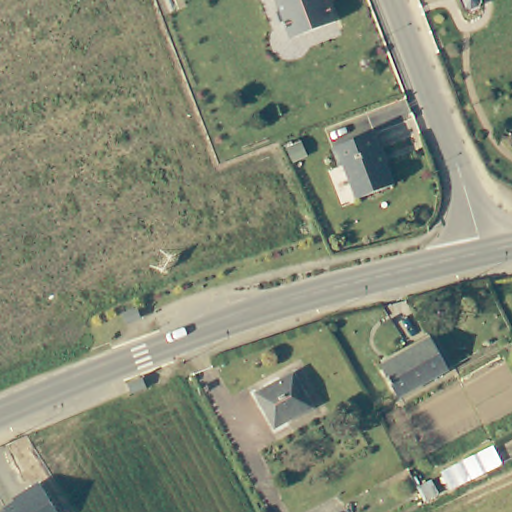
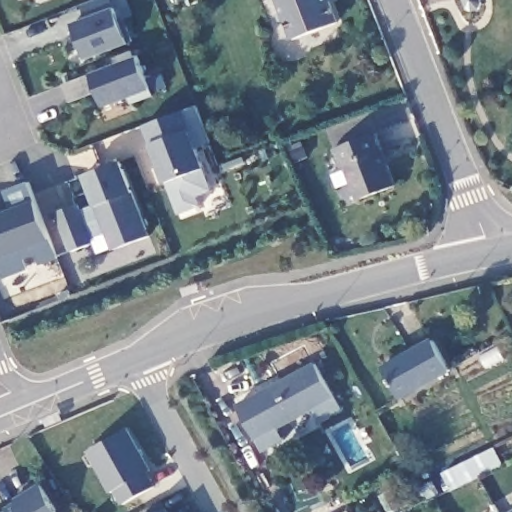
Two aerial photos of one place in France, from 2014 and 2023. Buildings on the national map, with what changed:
new [(85,59),(71,23),(86,16),(81,6),(95,0),(112,0),(114,6),(127,43),(85,59)]
unchanged [(276,0),(326,0),(334,23),(290,38),(276,0)]
new [(150,88),(153,97),(130,105),(128,97),(102,106),(89,74),(138,55),(150,88)]
new [(209,141),(197,147),(204,167),(210,191),(198,195),(202,206),(177,216),(164,182),(150,142),(143,124),(182,109),(195,104),(209,141)]
unchanged [(343,168),(339,169),(332,149),(374,134),(393,187),(355,200),(343,168)]
new [(149,236),(113,250),(111,248),(98,253),(93,241),(70,252),(54,212),(78,203),(80,208),(92,203),(81,176),(120,161),(149,236)]
new [(0,198),(3,196),(2,189),(28,181),(34,197),(50,240),(56,258),(3,278),(0,271),(0,198)]
unchanged [(397,399),(379,368),(429,340),(447,372),(397,399)]
new [(236,404),(314,361),(342,408),(319,421),(312,409),(278,429),(284,440),(262,451),(236,404)]
demolished [(314,407),(277,427),(259,393),(296,374),(314,407)]
new [(153,470),(148,473),(155,486),(119,504),(111,491),(109,492),(86,450),(129,428),(153,470)]
unchanged [(12,498),(38,483),(55,512),(0,512),(0,511),(14,501),(12,498)]
new [(169,512),(154,512),(165,505),(169,512)]
new [(509,512),(512,510),(512,512),(509,512)]

